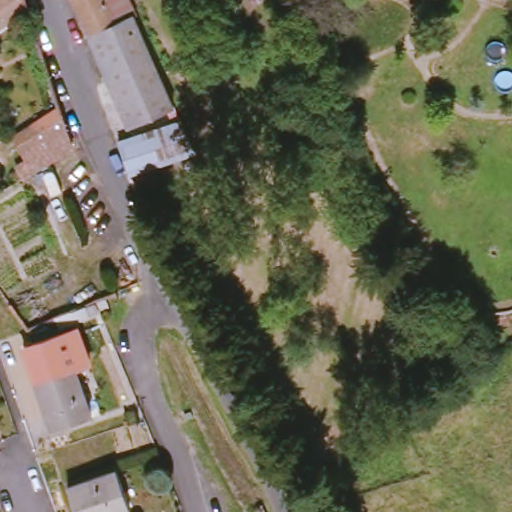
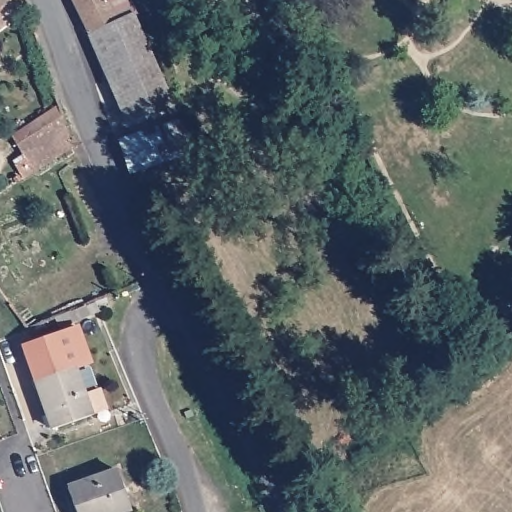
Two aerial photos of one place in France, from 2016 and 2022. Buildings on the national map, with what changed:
unchanged [(0,5),(0,0),(7,0),(0,5)]
unchanged [(140,17),(137,19),(177,103),(133,123),(95,34),(78,0),(133,0),(140,17)]
unchanged [(12,139),(60,107),(72,147),(32,173),(27,167),(28,164),(12,139)]
unchanged [(177,120),(190,151),(130,174),(117,143),(177,120)]
unchanged [(33,381),(20,344),(77,323),(92,362),(77,370),(75,365),(52,374),(37,380),(33,381)]
unchanged [(37,380),(75,365),(93,415),(55,429),(37,380)]
unchanged [(117,466),(132,507),(119,512),(78,512),(67,484),(117,466)]

